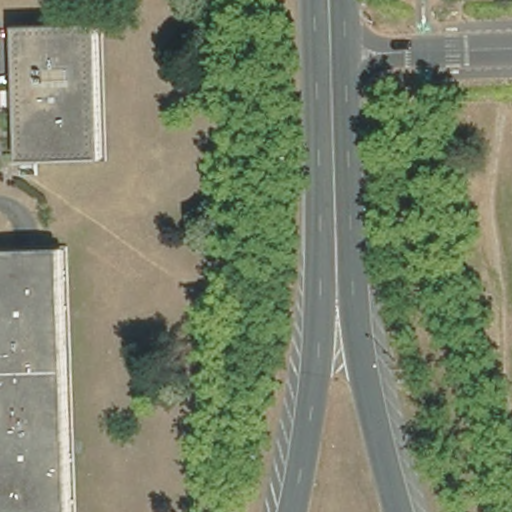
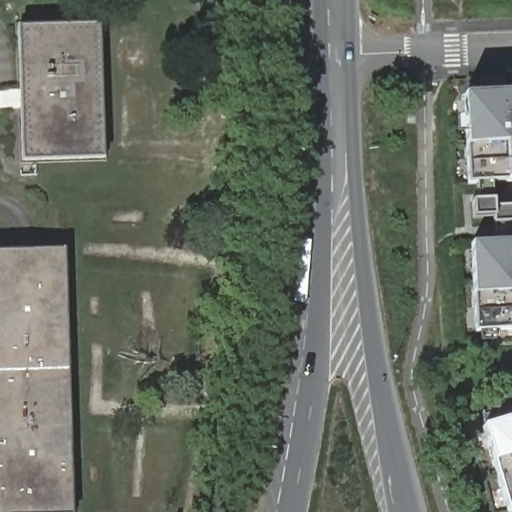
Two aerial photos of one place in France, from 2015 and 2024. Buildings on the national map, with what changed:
unchanged [(101,37),(106,169),(28,171),(22,40),(101,37)]
new [(468,183),(467,145),(466,95),(512,93),(512,180),(505,180),(468,183)]
new [(474,295),(470,243),(512,241),(512,330),(475,332),(474,295)]
unchanged [(75,512),(62,512),(0,512),(0,251),(69,250),(75,512)]
new [(482,426),(512,417),(512,509),(507,510),(482,426)]

